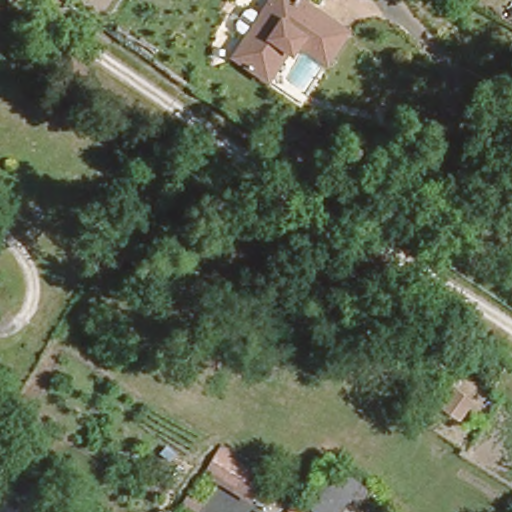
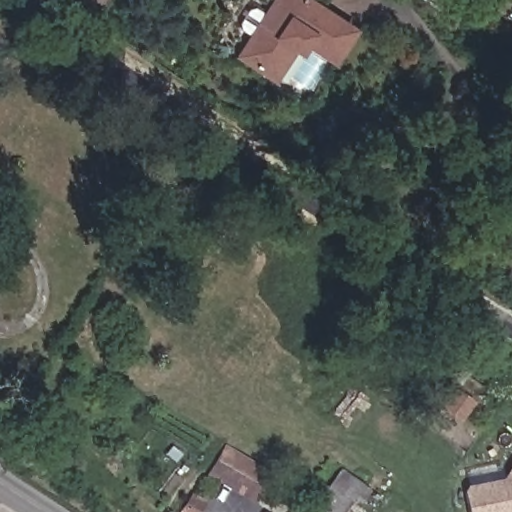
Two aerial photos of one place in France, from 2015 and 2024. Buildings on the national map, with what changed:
unchanged [(327,54),(302,36),(297,45),(291,41),(269,73),(232,51),(263,0),(312,0),(348,23),(327,54)]
unchanged [(453,410),(437,399),(447,382),(464,392),(453,410)]
unchanged [(247,492),(200,465),(211,446),(217,436),(263,464),(273,470),(268,481),(257,499),(247,492)]
new [(512,465),(512,512),(470,512),(465,486),(503,478),(512,465)]
unchanged [(327,470),(351,485),(340,502),(333,512),(300,512),(292,507),(308,482),(316,487),(327,470)]
unchanged [(195,497),(183,512),(173,512),(171,511),(185,489),(195,497)]

